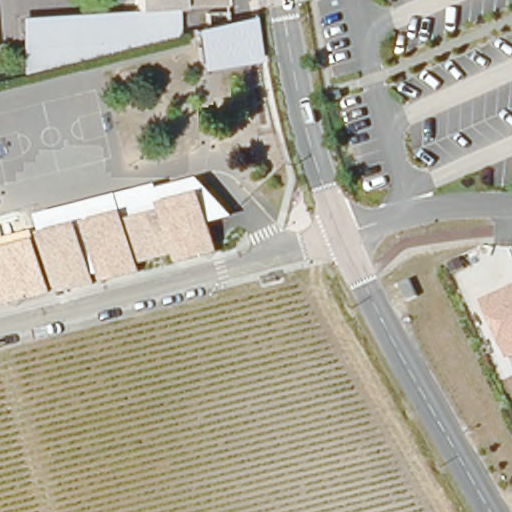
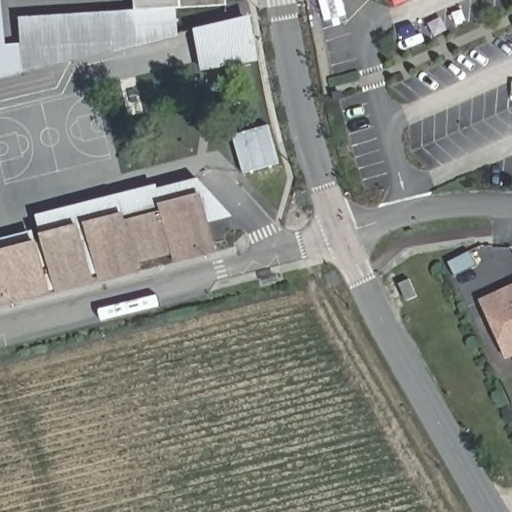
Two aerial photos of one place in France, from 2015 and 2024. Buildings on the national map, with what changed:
unchanged [(222,1),(182,4),(140,9),(139,0),(221,0),(222,1)]
unchanged [(23,30),(21,24),(50,20),(140,9),(182,4),(184,14),(186,38),(31,83),(23,30)]
unchanged [(261,62),(205,73),(197,30),(253,16),(261,62)]
new [(234,136),(269,126),(279,163),(244,173),(234,136)]
unchanged [(36,233),(45,232),(36,215),(156,184),(158,189),(198,178),(233,216),(209,222),(216,252),(174,262),(171,254),(136,262),(139,273),(99,282),(96,274),(90,276),(93,283),(0,307),(0,239),(31,231),(36,233)]
unchanged [(509,360),(480,298),(512,284),(512,358),(509,360)]

